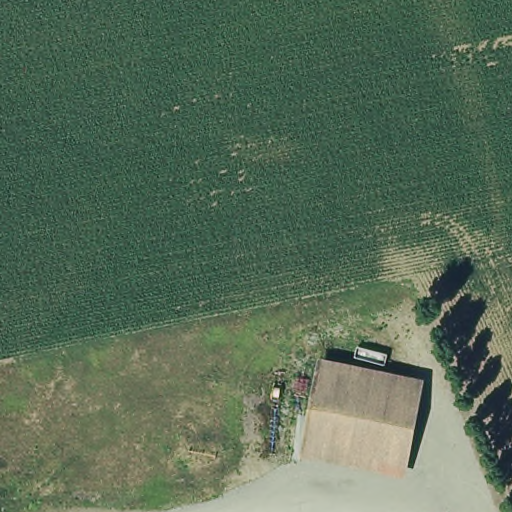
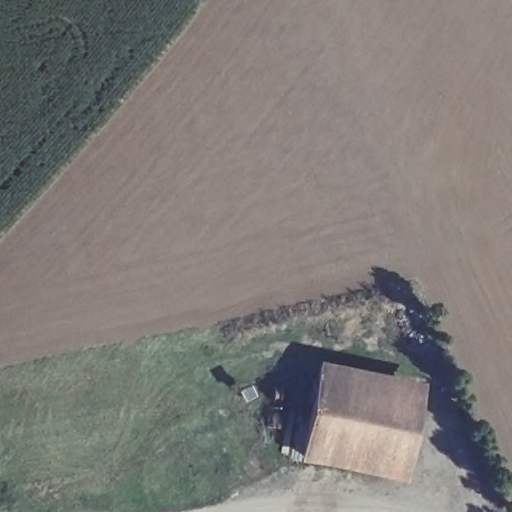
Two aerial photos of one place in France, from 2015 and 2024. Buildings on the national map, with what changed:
unchanged [(306,457),(319,398),(415,419),(402,479),(306,457)]

